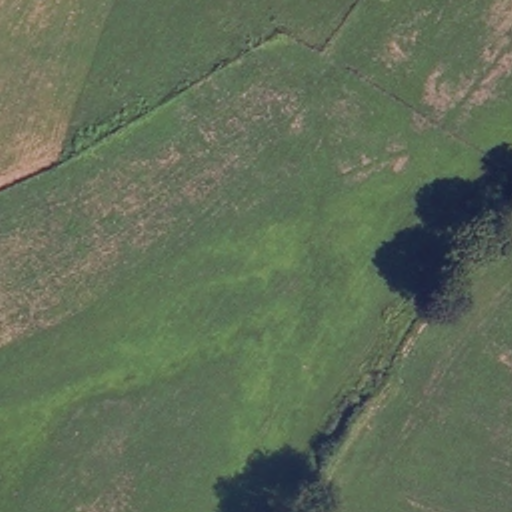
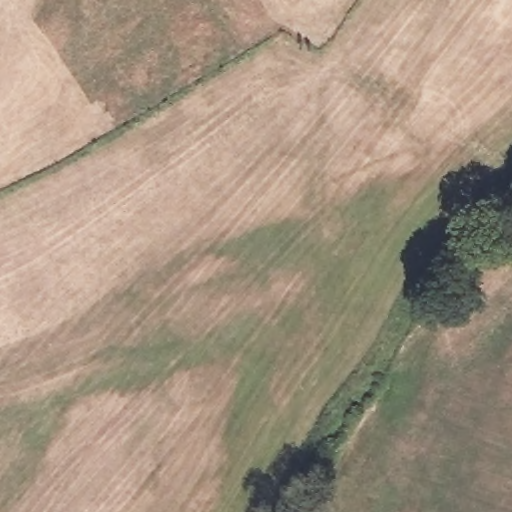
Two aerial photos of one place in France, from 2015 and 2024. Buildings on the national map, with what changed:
[]

